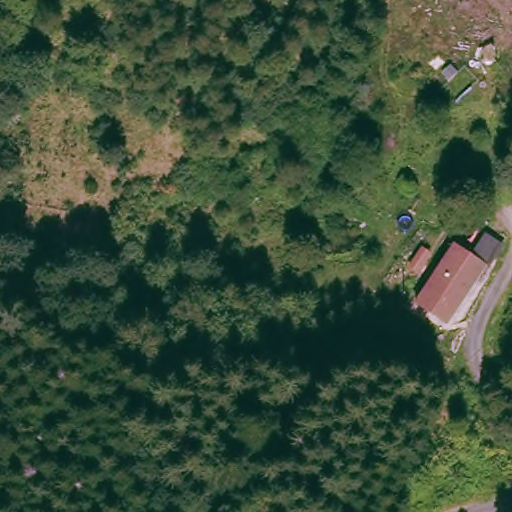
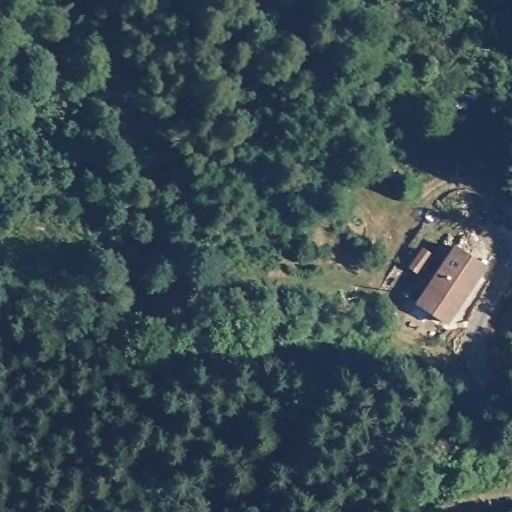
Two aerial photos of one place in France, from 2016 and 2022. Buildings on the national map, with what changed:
unchanged [(440,327),(410,307),(450,250),(479,270),(440,327)]

